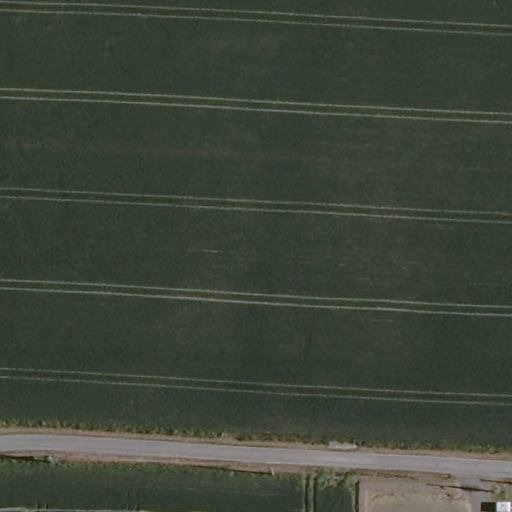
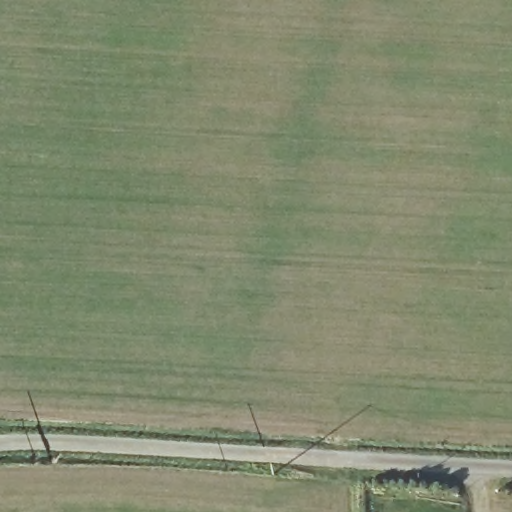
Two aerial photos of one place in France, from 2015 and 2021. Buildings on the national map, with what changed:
[]

